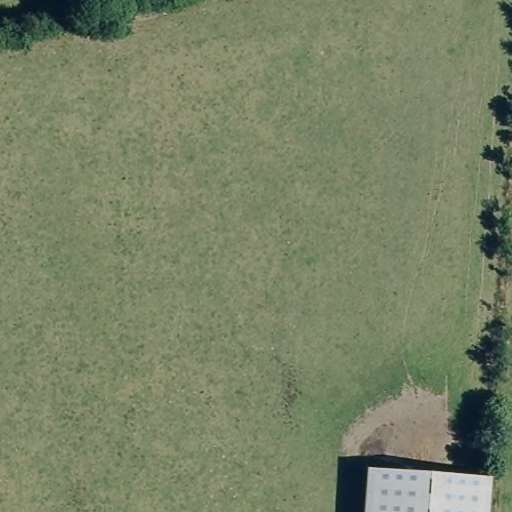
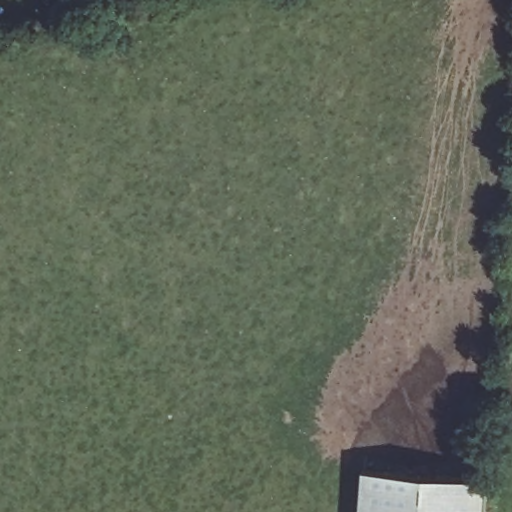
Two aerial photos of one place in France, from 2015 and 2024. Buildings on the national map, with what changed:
unchanged [(365,469),(488,478),(486,512),(363,512),(365,469)]

